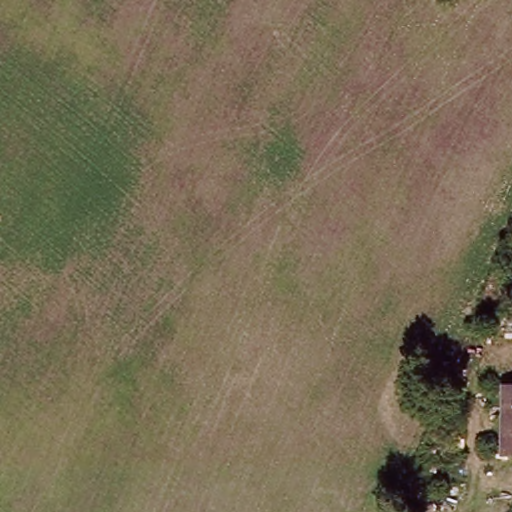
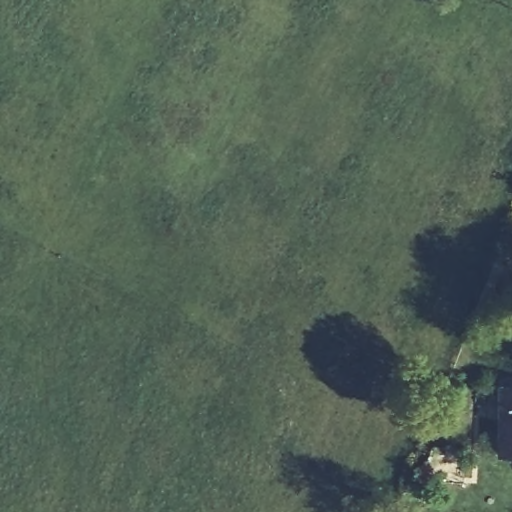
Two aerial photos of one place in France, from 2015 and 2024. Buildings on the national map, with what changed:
unchanged [(512,386),(512,453),(501,452),(504,385),(512,386)]

